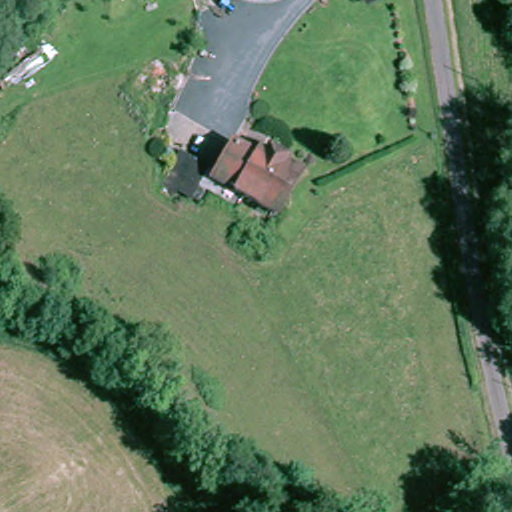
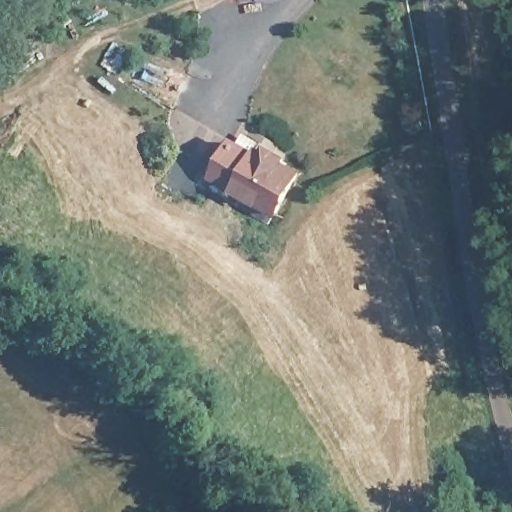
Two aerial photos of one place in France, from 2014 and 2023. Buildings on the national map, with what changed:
unchanged [(206,180),(214,166),(224,170),(240,141),(266,156),(271,147),(288,157),(285,163),(302,171),(279,210),(247,192),(242,202),(206,180)]

